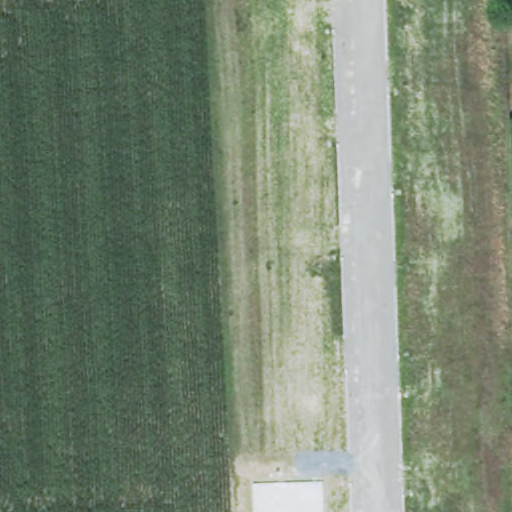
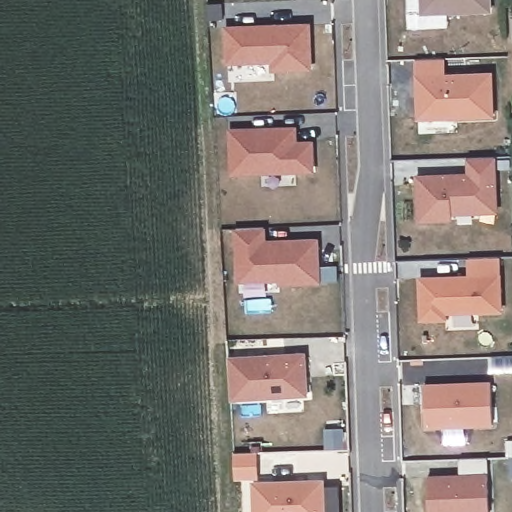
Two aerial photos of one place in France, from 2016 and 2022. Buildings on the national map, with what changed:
new [(413,15),(413,0),(481,0),(481,12),(413,15)]
new [(275,69),(275,60),(229,62),(227,29),(309,26),(310,67),(275,69)]
new [(442,59),(443,76),(490,74),(492,116),(456,118),(456,115),(417,117),(416,95),(421,90),(420,78),(416,78),(415,60),(442,59)]
new [(282,130),(283,139),(289,139),(290,145),(305,144),(307,171),(226,176),(224,133),(282,130)]
new [(476,214),(446,215),(446,221),(413,222),(412,177),(463,175),(462,159),(490,157),(492,196),(492,213),(476,214)]
new [(261,229),(261,244),(314,242),(315,283),(276,285),(276,279),(235,280),(233,230),(261,229)]
new [(465,277),(465,259),(495,257),(496,311),(441,313),(441,320),(417,320),(415,279),(465,277)]
new [(305,355),(307,397),(231,402),(229,360),(305,355)]
new [(483,383),(485,425),(418,428),(416,386),(483,383)]
new [(462,476),(461,459),(488,458),(490,512),(430,512),(429,478),(462,476)]
new [(323,482),(324,512),(254,512),(253,484),(323,482)]

